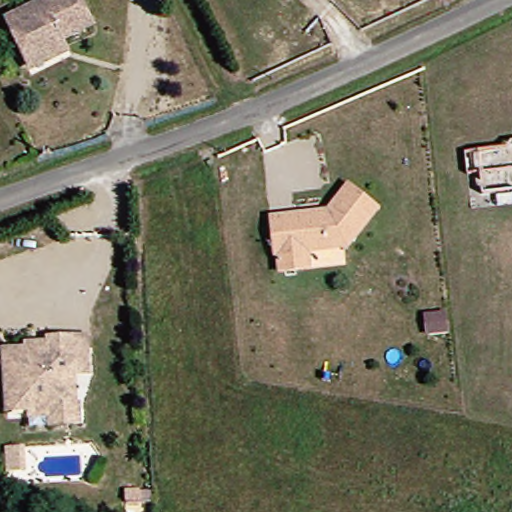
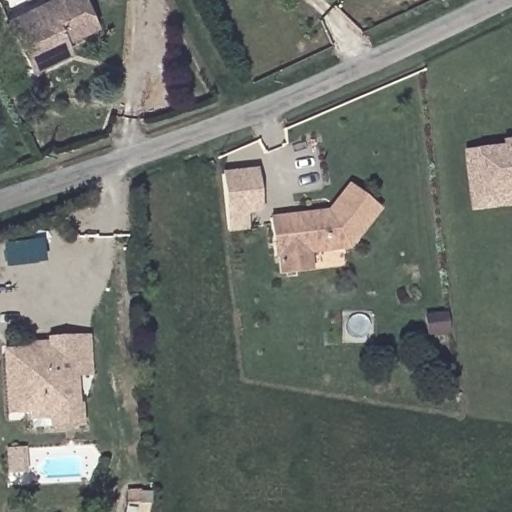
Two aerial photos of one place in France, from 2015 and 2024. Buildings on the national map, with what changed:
unchanged [(58,46),(16,68),(1,36),(0,35),(0,17),(31,2),(35,0),(75,0),(86,20),(90,29),(58,46)]
unchanged [(482,172),(468,172),(467,155),(507,149),(507,142),(512,142),(512,194),(485,194),(482,172)]
new [(247,214),(250,230),(230,232),(222,171),(258,167),(262,212),(247,214)]
unchanged [(280,273),(278,255),(273,255),(268,216),(327,211),(347,184),(377,206),(347,247),(307,251),(310,268),(280,273)]
unchanged [(75,425),(42,427),(41,411),(0,411),(0,349),(41,348),(41,339),(64,338),(79,337),(81,378),(66,380),(67,410),(74,409),(75,425)]

